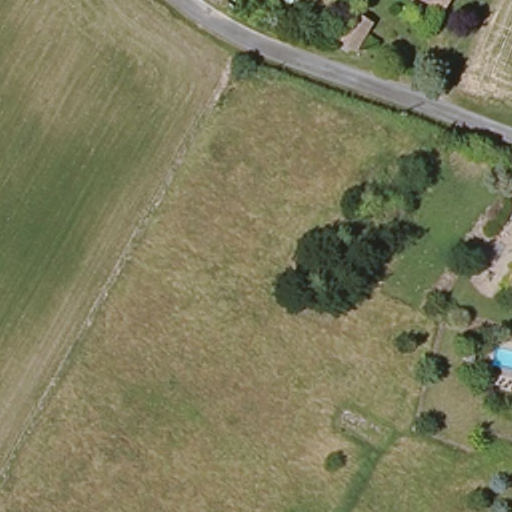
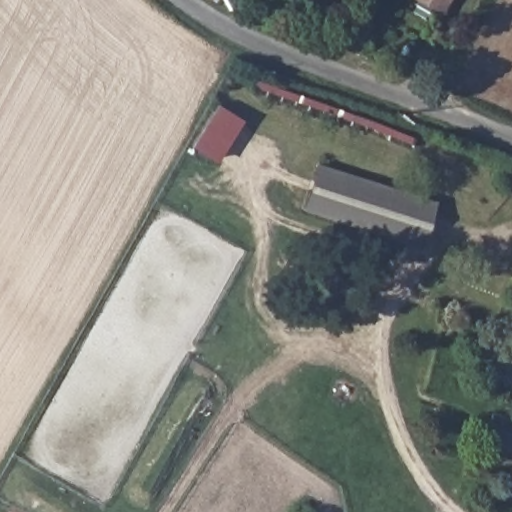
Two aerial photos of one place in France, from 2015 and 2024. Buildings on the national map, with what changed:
unchanged [(412,0),(454,0),(441,20),(412,0)]
unchanged [(339,34),(322,57),(309,49),(326,25),(339,34)]
new [(251,85),(254,78),(415,135),(411,144),(308,105),(251,85)]
new [(217,161),(191,145),(216,104),(242,118),(217,161)]
new [(317,161),(435,200),(421,247),(302,209),(317,161)]

